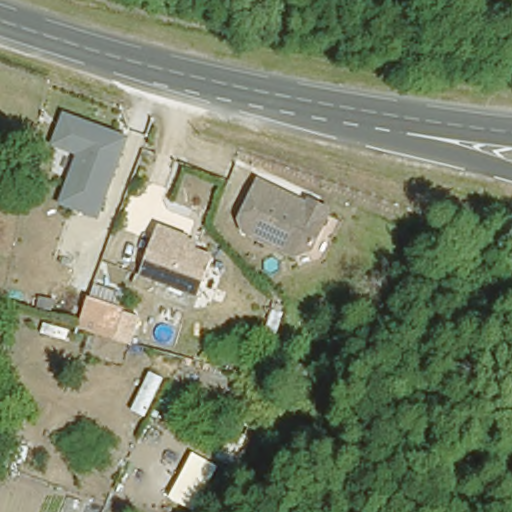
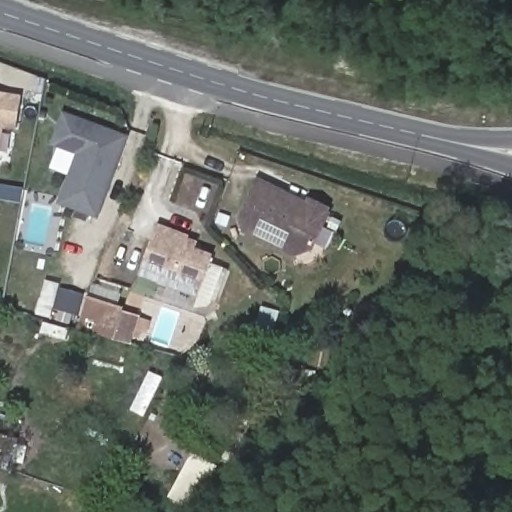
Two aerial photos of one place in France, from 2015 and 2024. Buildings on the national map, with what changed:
new [(0,147),(0,92),(21,95),(16,130),(2,129),(0,147)]
unchanged [(100,220),(61,205),(77,154),(53,145),(64,112),(128,137),(100,220)]
unchanged [(326,212),(312,242),(292,248),(245,227),(242,216),(257,180),(260,178),(307,200),(325,208),(326,212)]
unchanged [(211,257),(197,296),(139,274),(156,227),(187,239),(186,241),(184,247),(195,251),(211,257)]
unchanged [(117,340),(80,328),(89,297),(124,308),(117,340)]
unchanged [(196,512),(170,497),(192,453),(220,467),(196,512)]

